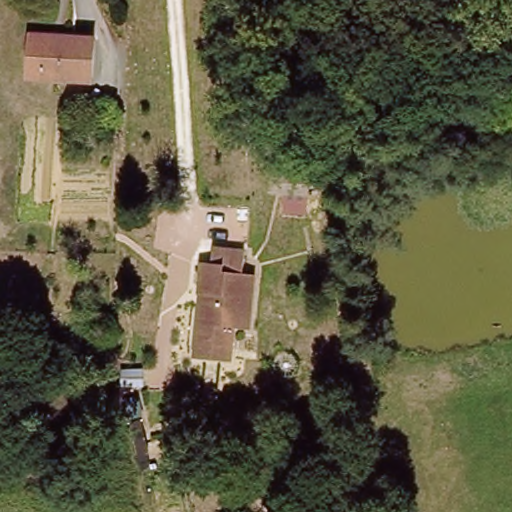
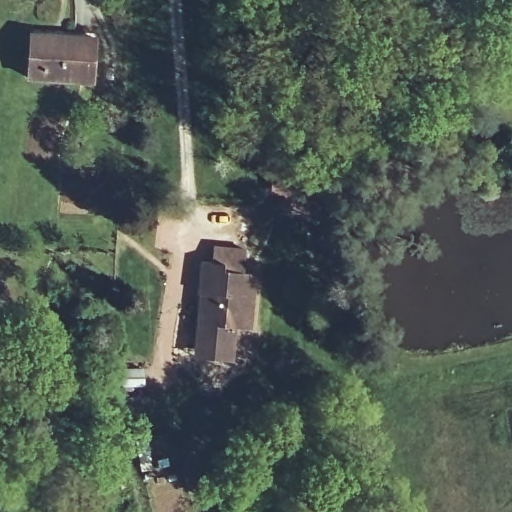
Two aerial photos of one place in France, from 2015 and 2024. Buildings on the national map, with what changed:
unchanged [(91,80),(27,76),(30,34),(93,37),(91,80)]
unchanged [(282,188),(284,169),(309,174),(306,192),(282,188)]
unchanged [(196,358),(198,344),(199,327),(202,301),(203,293),(201,293),(204,260),(215,262),(216,246),(248,249),(246,273),(257,275),(253,324),(252,330),(237,327),(235,348),(234,362),(196,358)]
unchanged [(115,368),(136,367),(139,382),(117,386),(115,368)]

